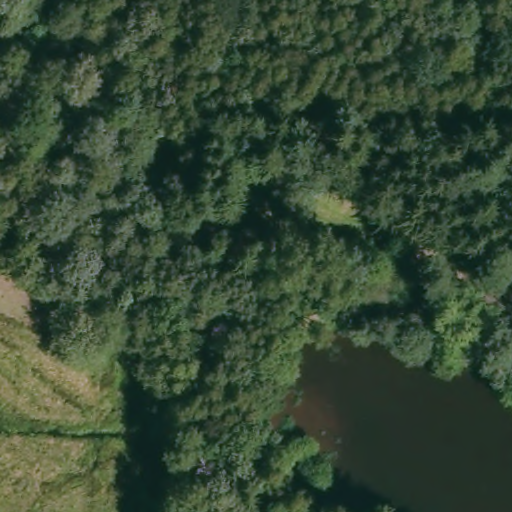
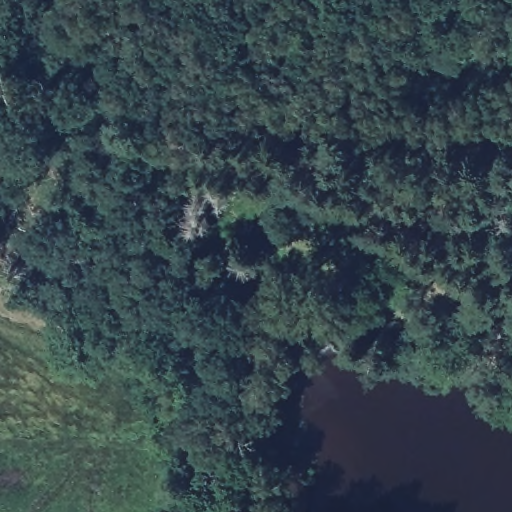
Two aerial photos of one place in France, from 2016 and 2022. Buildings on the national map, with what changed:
unchanged [(477,313),(483,296),(512,308),(512,335),(474,320),(477,313)]

